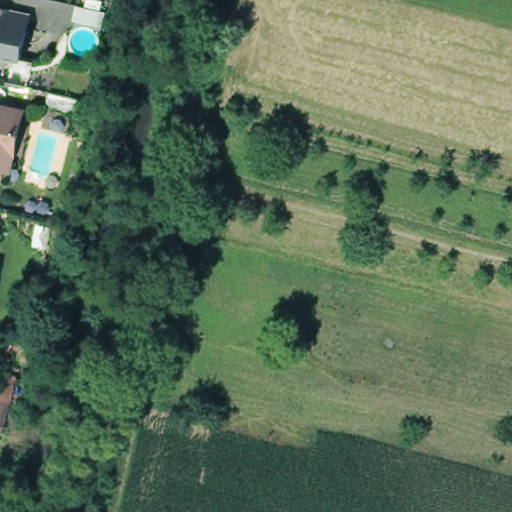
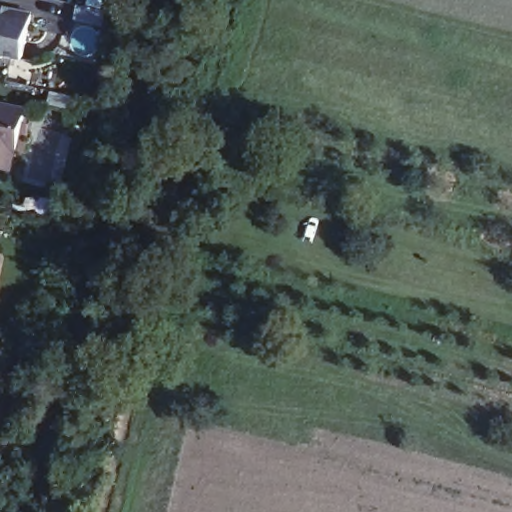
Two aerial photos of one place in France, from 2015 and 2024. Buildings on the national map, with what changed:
unchanged [(107,9),(104,22),(76,17),(79,2),(107,9)]
unchanged [(30,10),(20,52),(0,48),(0,3),(30,10)]
unchanged [(79,98),(75,114),(46,108),(49,91),(79,98)]
unchanged [(20,112),(12,152),(8,151),(4,169),(0,167),(0,107),(20,112)]
unchanged [(0,425),(0,408),(2,401),(7,375),(20,377),(14,403),(8,427),(0,425)]

